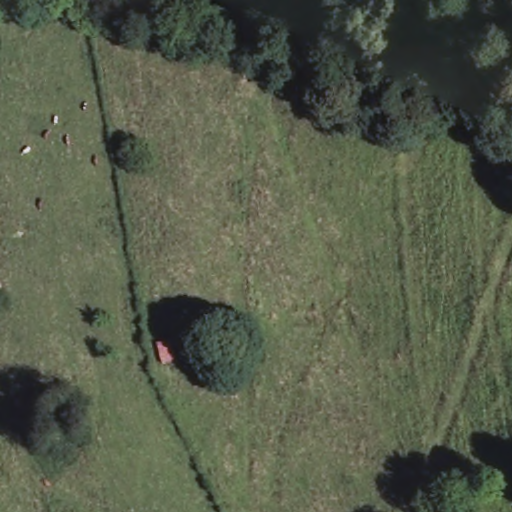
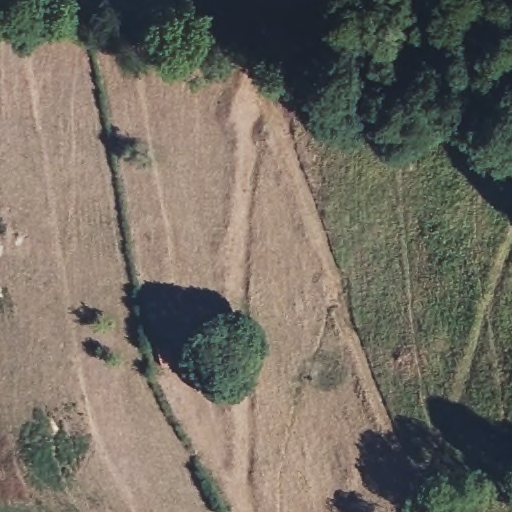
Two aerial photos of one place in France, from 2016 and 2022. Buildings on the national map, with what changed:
unchanged [(170,345),(176,368),(159,373),(157,370),(152,350),(170,345)]

